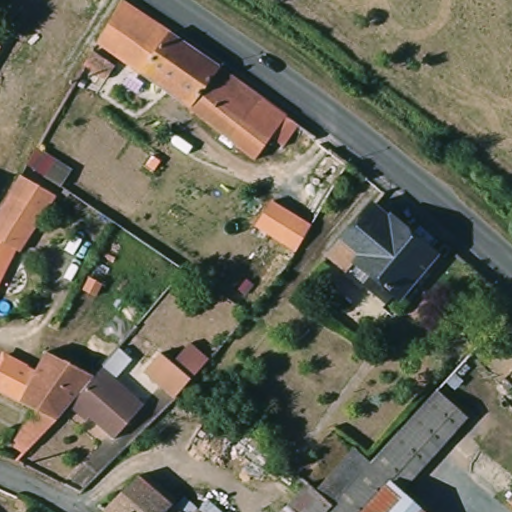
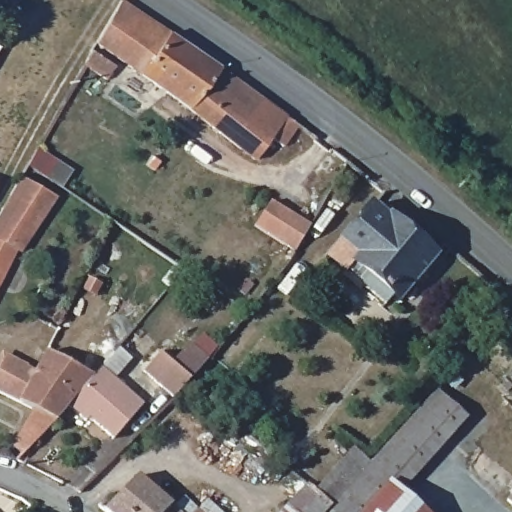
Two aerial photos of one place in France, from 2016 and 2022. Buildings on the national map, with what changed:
unchanged [(109,6),(113,0),(132,0),(181,31),(182,31),(198,42),(232,68),(233,69),(269,96),(279,104),(278,105),(248,148),(241,143),(229,135),(217,124),(192,105),(188,102),(180,96),(169,87),(168,86),(144,70),(143,69),(120,53),(118,51),(116,50),(93,33),(105,11),(109,6)]
unchanged [(114,55),(109,63),(107,66),(104,71),(79,55),(89,39),(114,55)]
unchanged [(26,181),(27,181),(34,169),(41,155),(64,171),(75,179),(68,193),(62,189),(61,188),(45,177),(39,186),(63,200),(50,219),(48,218),(45,216),(41,214),(33,208),(18,197),(25,183),(26,181)]
unchanged [(9,214),(12,208),(18,197),(33,208),(41,214),(45,216),(48,218),(50,219),(28,255),(25,254),(0,300),(0,230),(0,229),(9,214)]
unchanged [(322,268),(375,202),(390,215),(434,251),(439,256),(389,313),(384,309),(379,316),(357,298),(339,283),(322,268)]
unchanged [(300,227),(298,232),(286,254),(269,242),(249,229),(253,222),(264,204),(300,227)]
unchanged [(172,279),(178,272),(184,264),(194,272),(188,280),(182,287),(172,279)]
unchanged [(65,311),(68,313),(70,314),(67,320),(65,319),(61,317),(65,311)]
unchanged [(190,342),(197,347),(201,341),(215,352),(210,358),(210,359),(202,369),(196,376),(177,360),(190,342)]
unchanged [(175,397),(144,373),(163,351),(193,377),(175,397)]
unchanged [(39,415),(24,407),(22,406),(0,393),(0,371),(4,374),(13,361),(14,360),(38,372),(49,355),(65,364),(101,382),(80,406),(73,414),(71,415),(60,428),(53,436),(51,437),(34,455),(32,457),(29,460),(16,454),(19,449),(17,447),(39,415)]
unchanged [(80,406),(101,382),(106,377),(149,414),(118,447),(94,426),(90,429),(73,414),(80,406)]
unchanged [(507,383),(512,377),(512,388),(507,383)]
unchanged [(412,431),(443,396),(473,423),(442,456),(412,431)]
unchanged [(312,492),(354,446),(378,468),(344,505),(412,431),(442,456),(404,497),(420,512),(294,512),(312,492)]
unchanged [(139,483),(173,512),(114,512),(139,483)]
unchanged [(14,511),(19,505),(28,512),(15,512),(14,511)]
unchanged [(184,505),(192,512),(177,512),(184,505)]
unchanged [(205,507),(211,512),(201,512),(205,507)]
unchanged [(509,510),(512,507),(512,512),(511,512),(509,510)]

